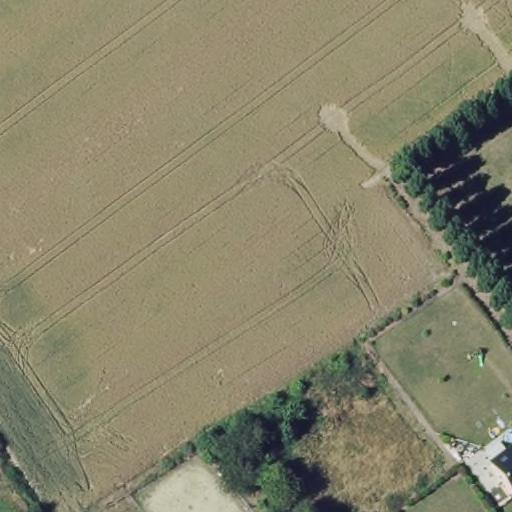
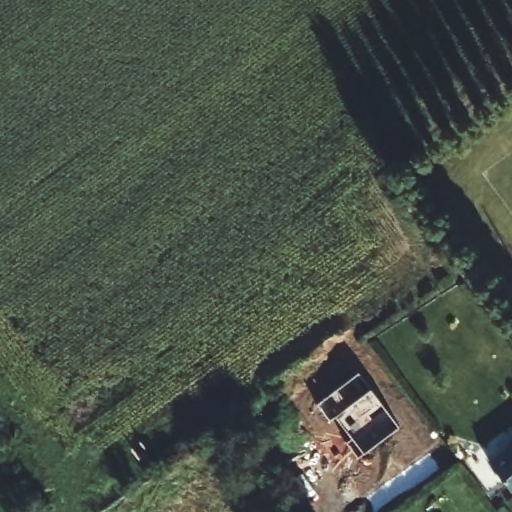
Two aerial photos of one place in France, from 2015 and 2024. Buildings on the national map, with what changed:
new [(371,388),(399,426),(361,456),(349,441),(354,438),(336,415),(328,420),(318,405),(359,372),(371,388)]
unchanged [(512,442),(512,493),(486,460),(512,442)]

